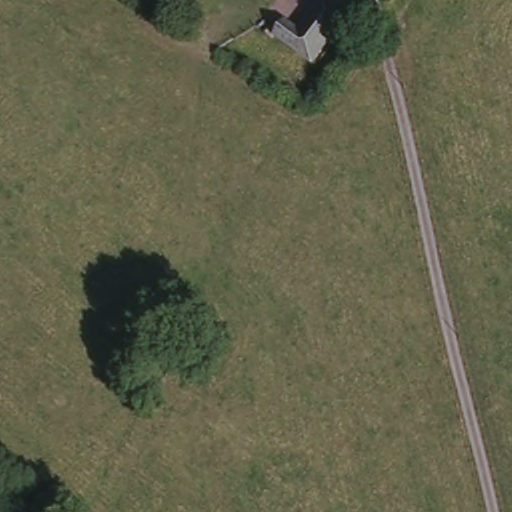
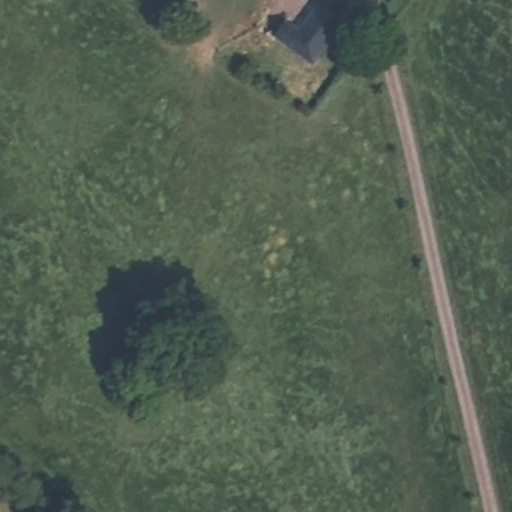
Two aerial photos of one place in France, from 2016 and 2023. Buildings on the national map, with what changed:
unchanged [(314,9),(338,26),(311,62),(273,33),(286,20),(298,31),(314,9)]

